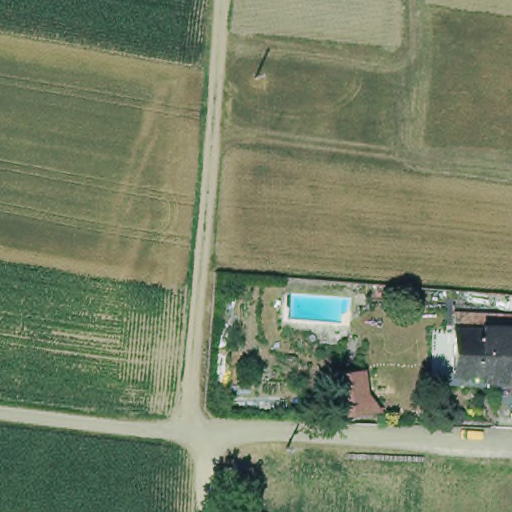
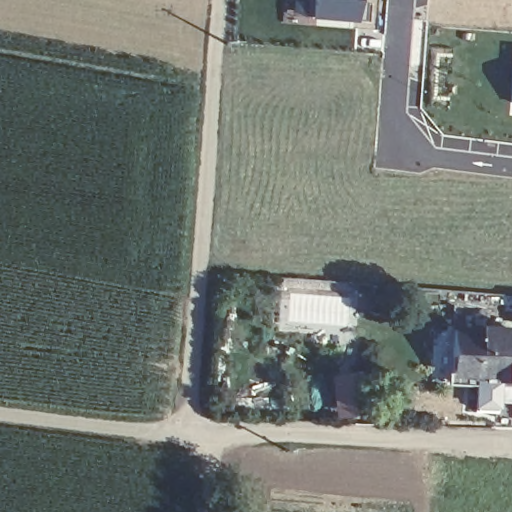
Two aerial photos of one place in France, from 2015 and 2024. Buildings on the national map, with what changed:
new [(360,23),(314,20),(314,0),(362,0),(360,23)]
unchanged [(447,334),(512,335),(511,386),(445,385),(447,334)]
unchanged [(334,375),(361,373),(364,415),(338,418),(334,375)]

